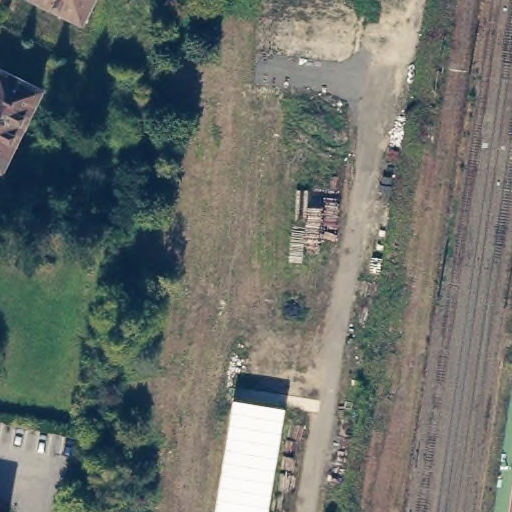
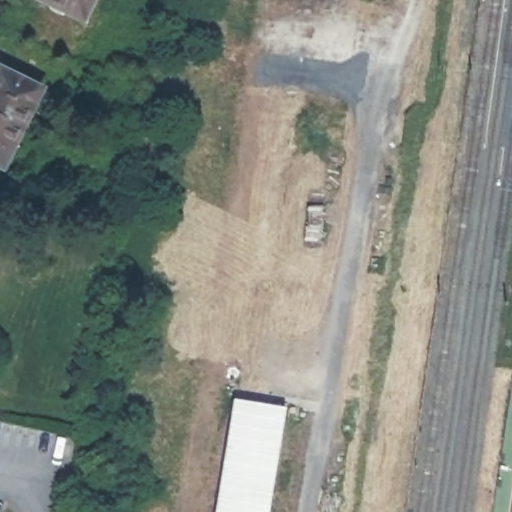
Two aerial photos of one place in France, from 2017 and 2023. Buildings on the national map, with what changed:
unchanged [(62,9),(61,9),(60,9),(59,8),(59,9),(54,9),(48,6),(44,1),(43,0),(86,0),(78,16),(62,9)]
unchanged [(0,69),(43,89),(23,130),(0,118),(0,69)]
unchanged [(0,167),(0,118),(23,130),(3,169),(0,167)]
unchanged [(397,391),(394,408),(383,406),(385,389),(397,391)]
unchanged [(284,409),(268,512),(214,512),(233,401),(284,409)]

